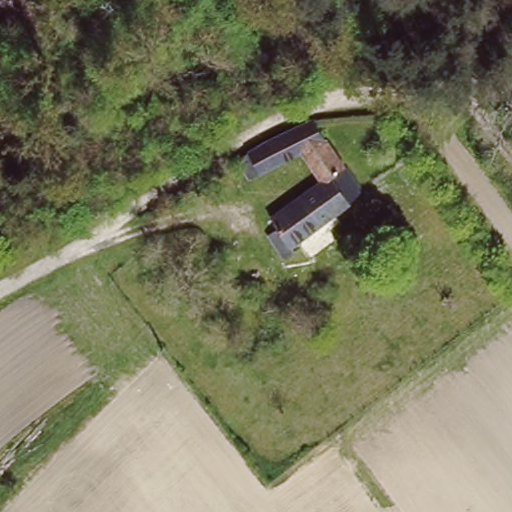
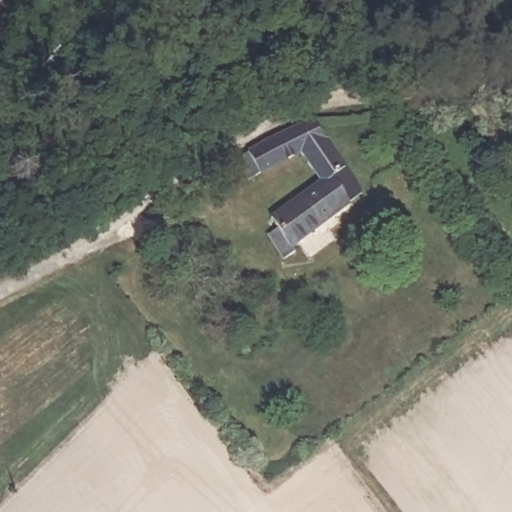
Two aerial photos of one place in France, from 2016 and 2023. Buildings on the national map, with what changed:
unchanged [(365,193),(335,219),(333,217),(289,250),(293,256),(280,266),(262,242),(275,232),(267,222),(316,180),(295,150),(245,169),(232,150),(269,135),(314,122),(365,193)]

